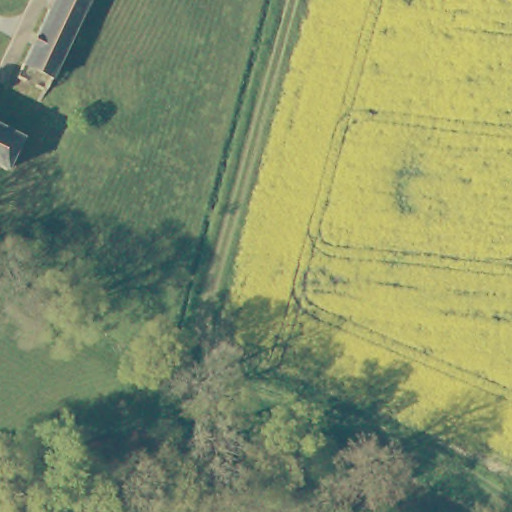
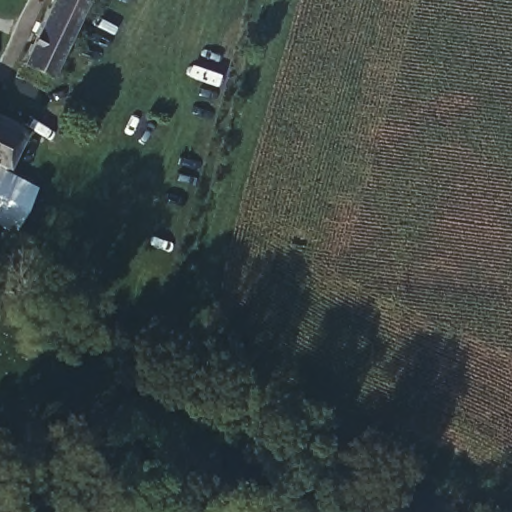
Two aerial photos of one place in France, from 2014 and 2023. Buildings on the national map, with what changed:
unchanged [(43,90),(14,77),(52,0),(89,0),(43,90)]
unchanged [(0,170),(0,129),(18,139),(2,171),(0,170)]
new [(13,233),(0,227),(0,170),(2,171),(38,188),(13,233)]
unchanged [(320,459),(325,450),(337,457),(332,466),(320,459)]

